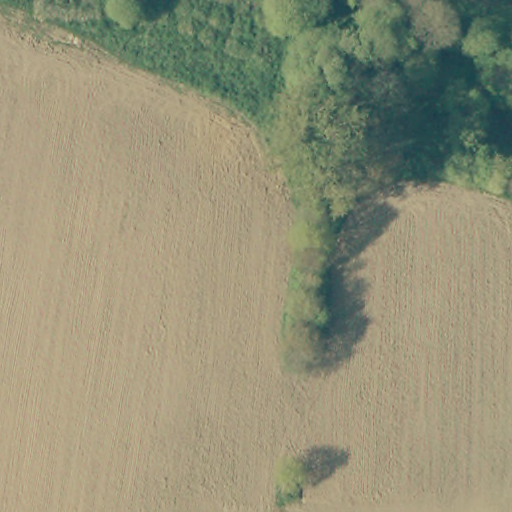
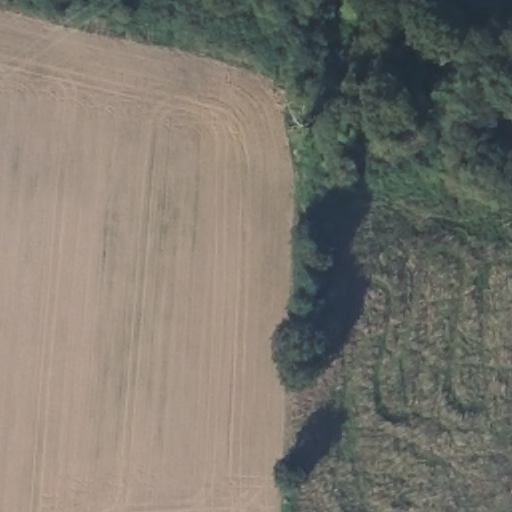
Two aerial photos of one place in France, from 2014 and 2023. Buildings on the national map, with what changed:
[]

